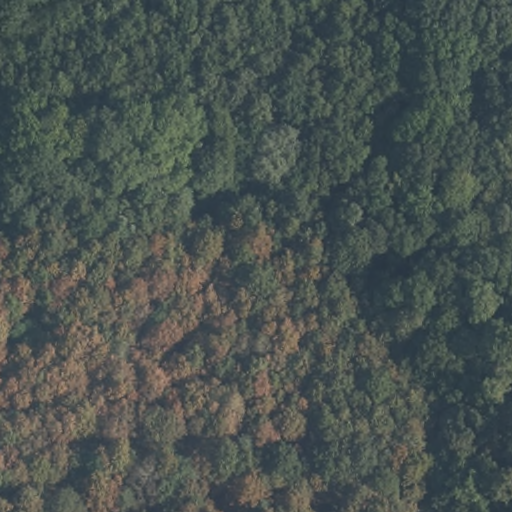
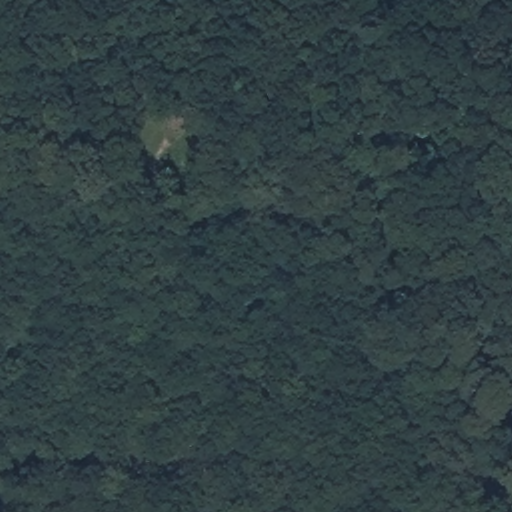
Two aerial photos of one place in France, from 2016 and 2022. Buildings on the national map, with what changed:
[]

